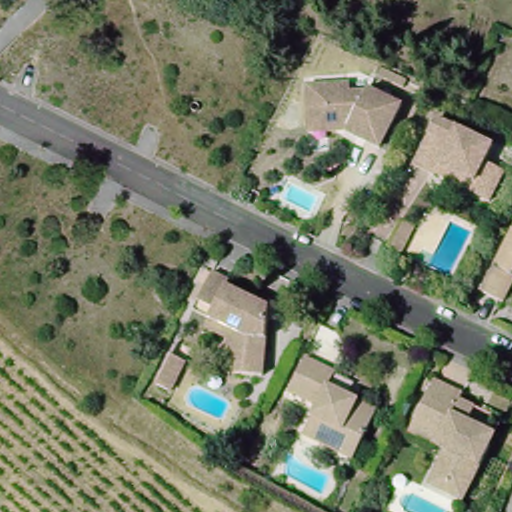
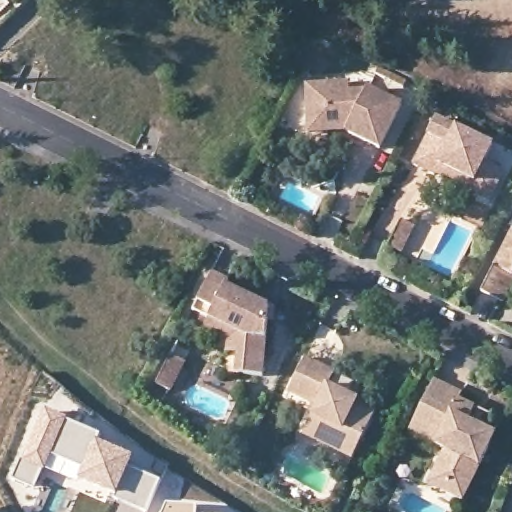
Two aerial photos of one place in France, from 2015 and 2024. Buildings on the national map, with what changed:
unchanged [(309,121),(308,82),(349,79),(351,90),(369,89),(371,86),(404,102),(383,145),(348,128),(309,130),(309,121)]
unchanged [(413,165),(436,120),(493,148),(484,164),(504,175),(489,204),(467,193),(434,176),(413,165)]
unchanged [(408,223),(394,249),(382,243),(395,217),(408,223)]
unchanged [(511,276),(512,277),(512,280),(501,305),(478,294),(509,231),(512,232),(512,273),(511,276)]
unchanged [(225,345),(199,332),(204,321),(189,314),(194,305),(208,275),(226,284),(223,289),(268,311),(261,379),(232,377),(233,358),(224,357),(225,345)]
new [(171,354),(187,362),(173,393),(156,385),(171,354)]
unchanged [(301,437),(315,409),(287,394),(304,361),(333,375),(326,388),(354,402),(374,412),(370,420),(349,462),(301,437)]
unchanged [(434,473),(444,452),(436,448),(408,434),(414,423),(434,382),(459,396),(458,401),(474,410),(468,423),(494,437),(462,503),(441,492),(428,485),(434,473)]
new [(45,408),(99,434),(97,439),(136,456),(114,499),(43,470),(33,488),(11,478),(45,408)]
new [(147,512),(144,512),(114,499),(130,468),(161,482),(147,512)]
new [(198,512),(166,512),(168,507),(198,508),(198,512)]

